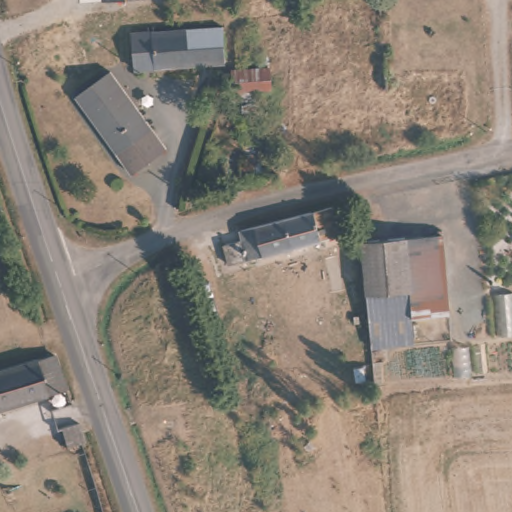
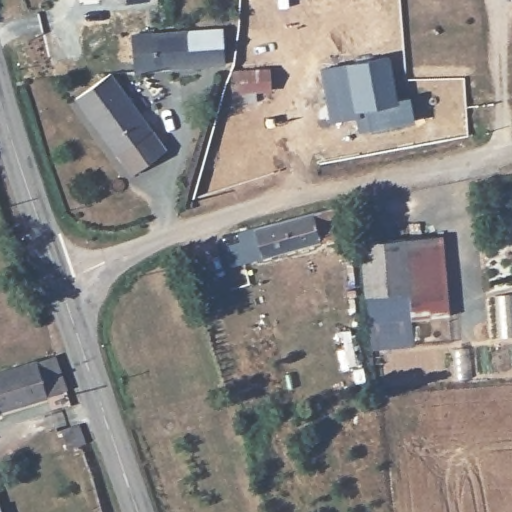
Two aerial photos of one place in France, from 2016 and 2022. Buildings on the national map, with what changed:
unchanged [(105,0),(135,0),(105,3),(105,0)]
unchanged [(222,28),(225,61),(135,70),(131,35),(166,33),(222,28)]
new [(344,63),(387,55),(395,98),(409,95),(413,120),(369,128),(366,110),(355,111),(356,115),(329,120),(320,68),(344,63)]
unchanged [(272,94),(257,94),(257,103),(232,105),(229,60),(268,58),(272,94)]
unchanged [(132,174),(76,99),(110,73),(139,113),(165,150),(144,166),(132,174)]
demolished [(318,95),(352,94),(352,136),(319,137),(318,95)]
unchanged [(260,106),(260,143),(242,143),(242,105),(260,106)]
unchanged [(260,154),(259,179),(242,178),(243,154),(260,154)]
unchanged [(333,207),(341,234),(250,262),(245,240),(264,234),(261,227),(333,207)]
unchanged [(442,240),(448,320),(411,323),(366,327),(360,247),(442,240)]
unchanged [(411,323),(412,348),(368,349),(366,327),(411,323)]
unchanged [(51,353),(62,389),(0,407),(0,368),(48,354),(51,353)]
unchanged [(79,422),(85,441),(66,447),(61,427),(79,422)]

